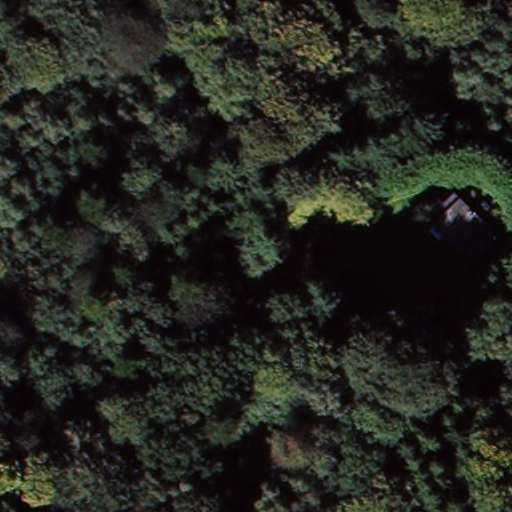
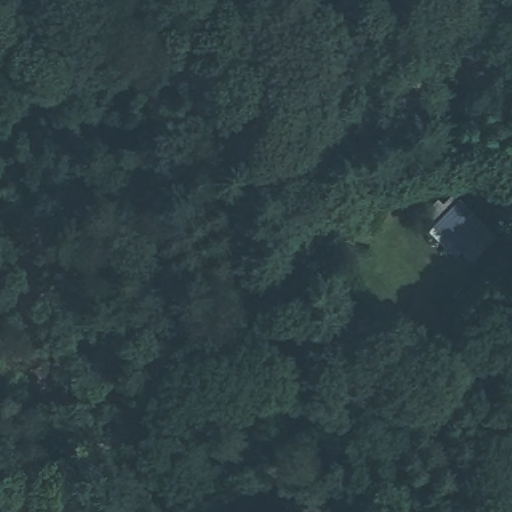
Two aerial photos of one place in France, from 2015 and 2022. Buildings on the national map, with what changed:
unchanged [(433,201),(482,248),(468,263),(419,215),(433,201)]

